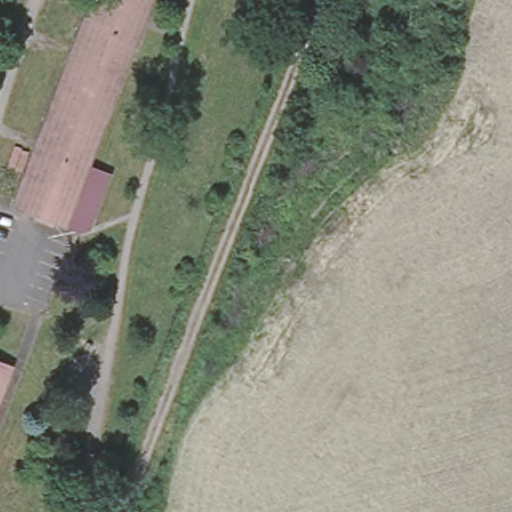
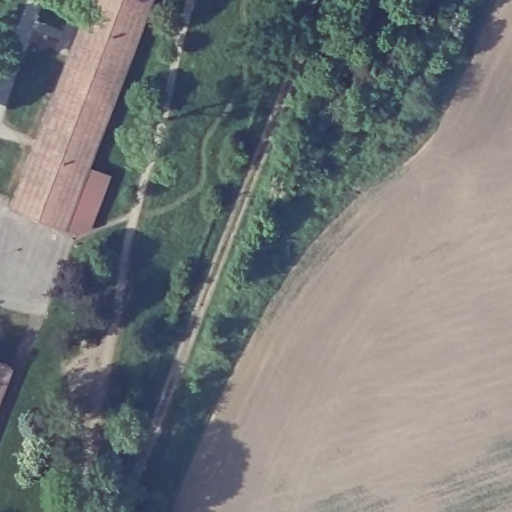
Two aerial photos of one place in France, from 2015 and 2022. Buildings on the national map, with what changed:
unchanged [(83,159),(61,216),(10,196),(82,0),(143,0),(83,159)]
unchanged [(83,159),(105,168),(84,225),(61,216),(83,159)]
unchanged [(0,358),(7,360),(0,379),(0,358)]

